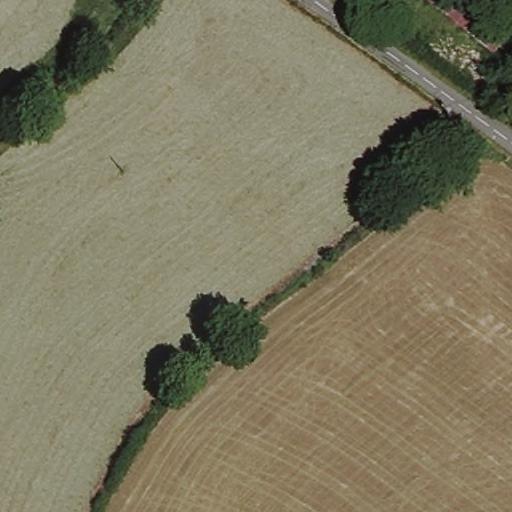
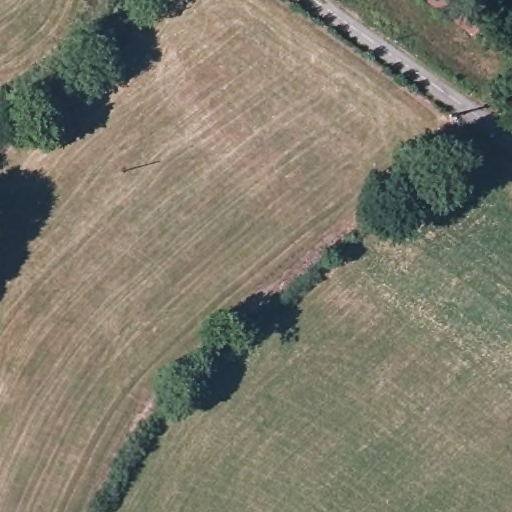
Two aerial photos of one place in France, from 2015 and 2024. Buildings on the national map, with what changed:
unchanged [(494,53),(427,0),(462,0),(507,35),(494,53)]

